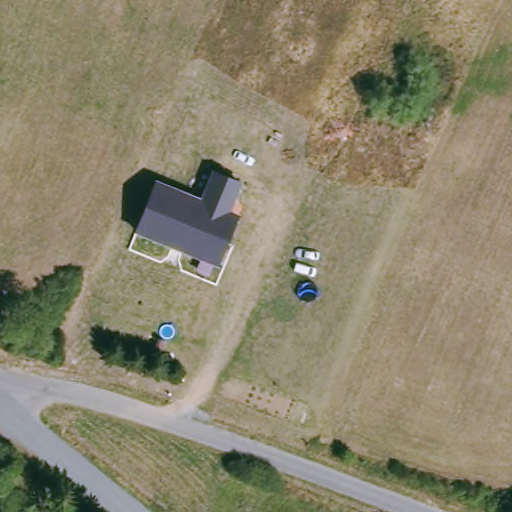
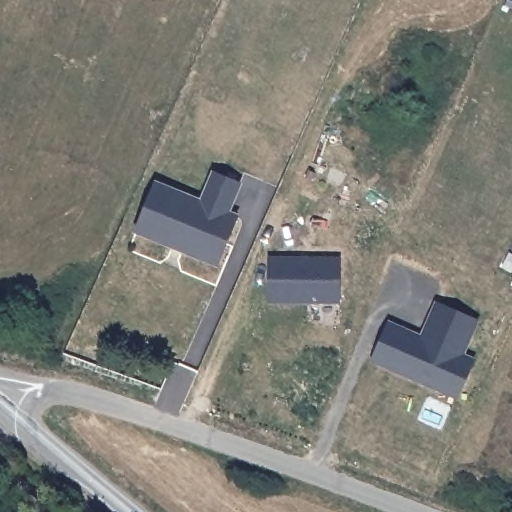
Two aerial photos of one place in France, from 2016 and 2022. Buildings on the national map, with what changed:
unchanged [(233,211),(244,216),(221,266),(134,232),(156,180),(204,199),(214,171),(246,183),(233,211)]
new [(341,306),(271,306),(271,263),(341,262),(341,306)]
new [(439,393),(419,384),(412,381),(371,363),(387,325),(420,340),(434,306),(476,323),(461,358),(472,362),(463,383),(456,400),(439,393)]

